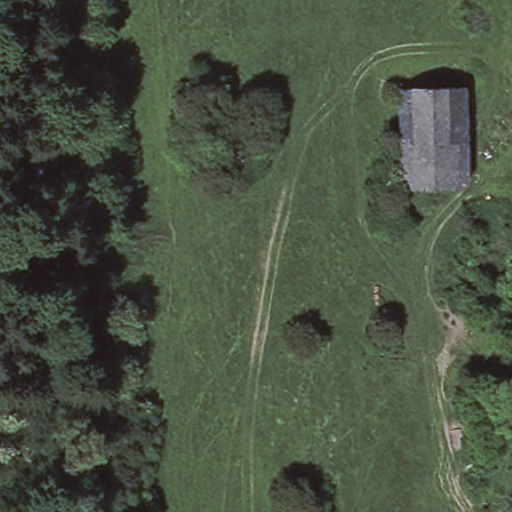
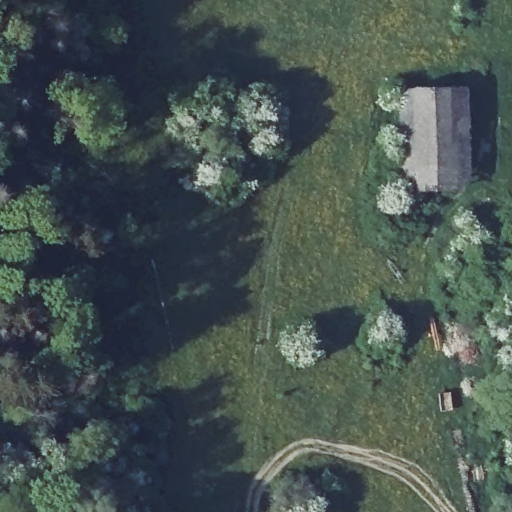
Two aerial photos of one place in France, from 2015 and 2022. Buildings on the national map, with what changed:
unchanged [(453,87),(456,190),(414,191),(410,88),(453,87)]

